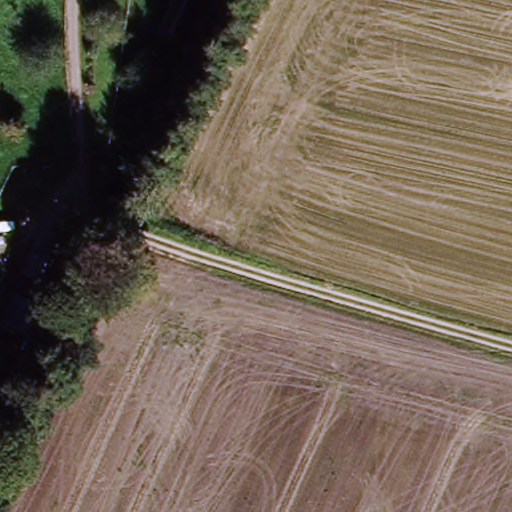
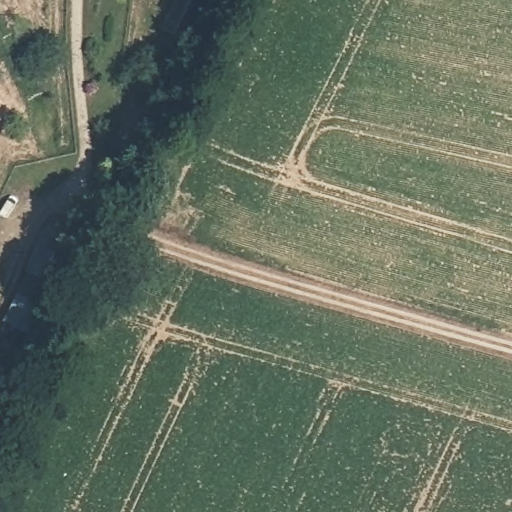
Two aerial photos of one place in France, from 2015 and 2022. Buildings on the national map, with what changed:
unchanged [(193,0),(192,1),(189,0),(193,0)]
unchanged [(74,249),(33,325),(0,301),(0,297),(34,229),(74,249)]

